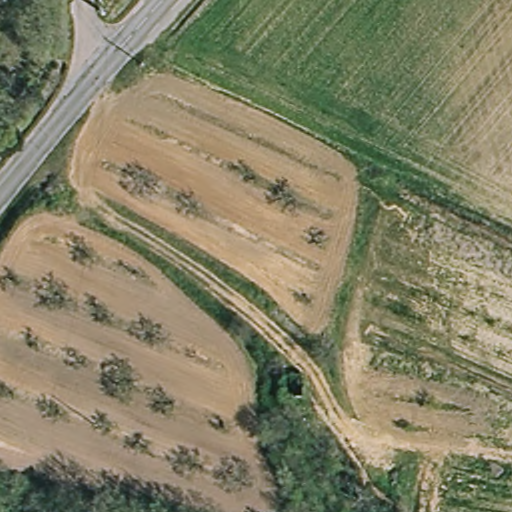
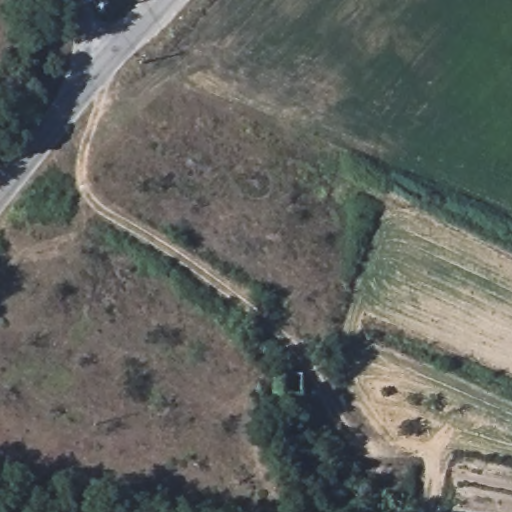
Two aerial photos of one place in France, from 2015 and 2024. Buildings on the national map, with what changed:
unchanged [(100,17),(87,9),(95,0),(97,0),(101,2),(108,7),(100,17)]

